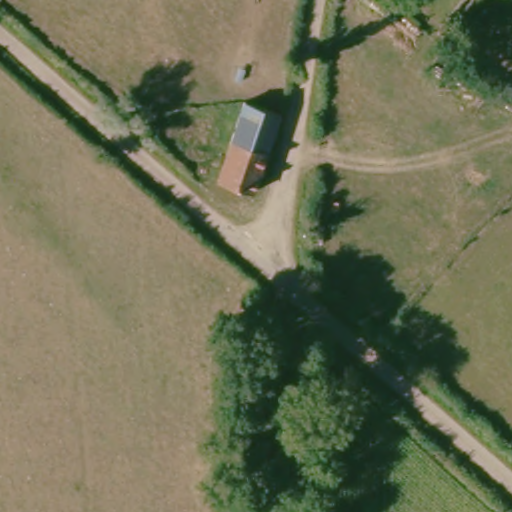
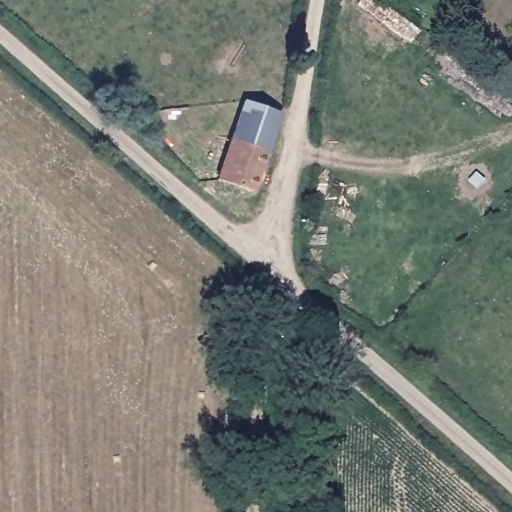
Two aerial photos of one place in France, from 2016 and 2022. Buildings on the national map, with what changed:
unchanged [(288,119),(257,199),(221,184),(254,105),(288,119)]

